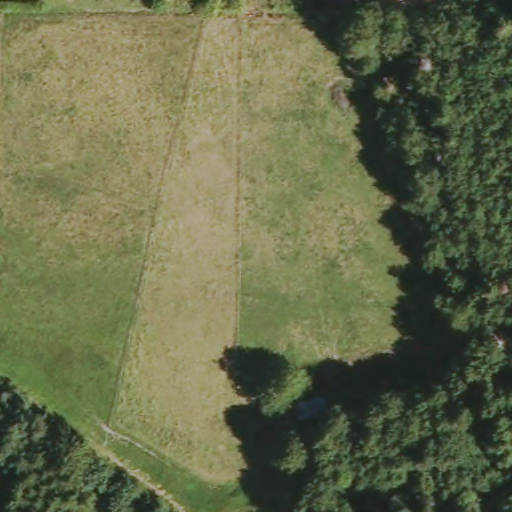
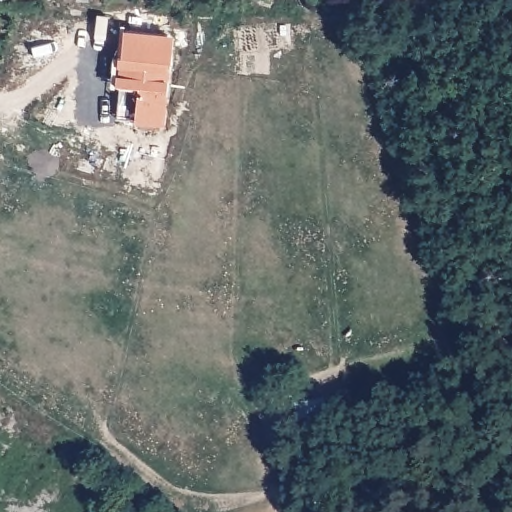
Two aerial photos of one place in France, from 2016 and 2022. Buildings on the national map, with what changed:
new [(118,120),(113,114),(124,31),(173,36),(164,125),(118,120)]

